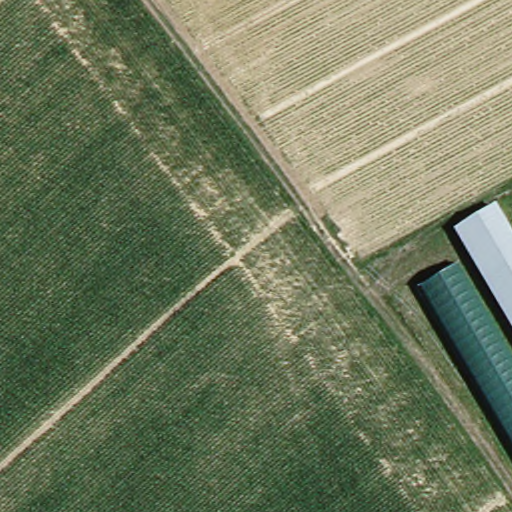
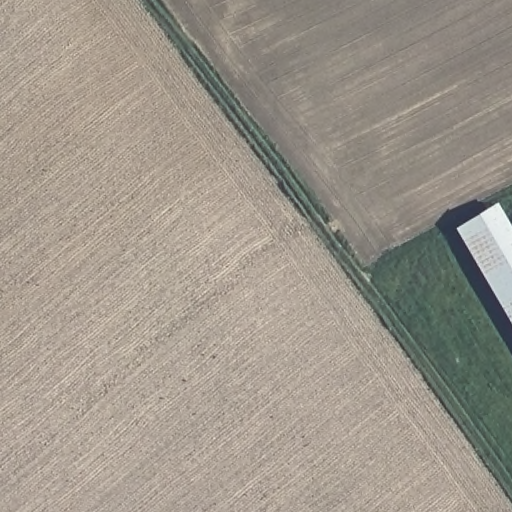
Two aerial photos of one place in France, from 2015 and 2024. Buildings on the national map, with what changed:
unchanged [(443,234),(484,206),(512,254),(512,352),(443,234)]
demolished [(453,264),(512,365),(512,451),(417,287),(453,264)]

